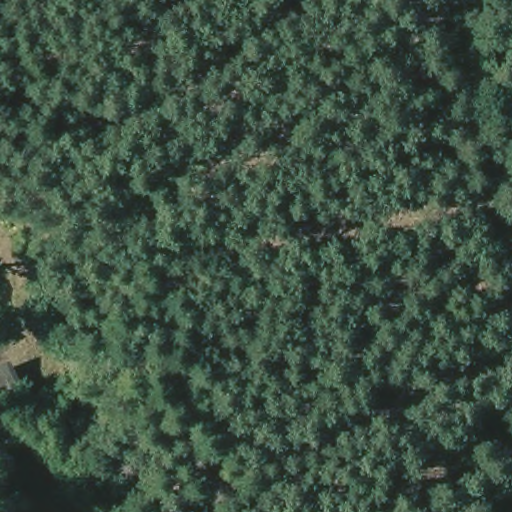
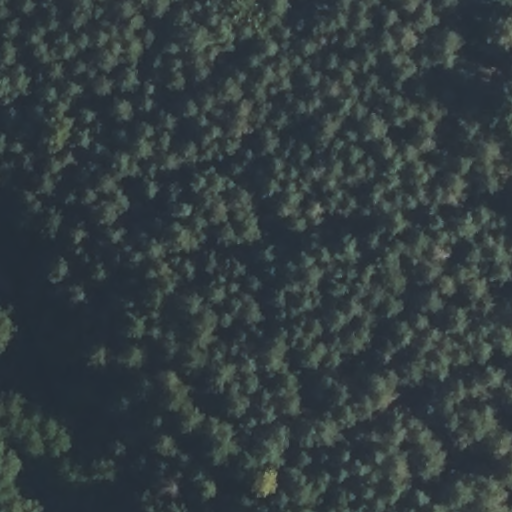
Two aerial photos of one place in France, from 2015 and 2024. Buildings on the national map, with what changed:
unchanged [(0,405),(0,368),(8,365),(21,397),(0,405)]

